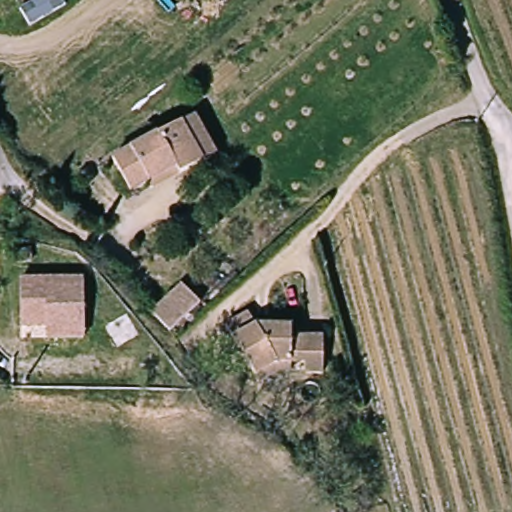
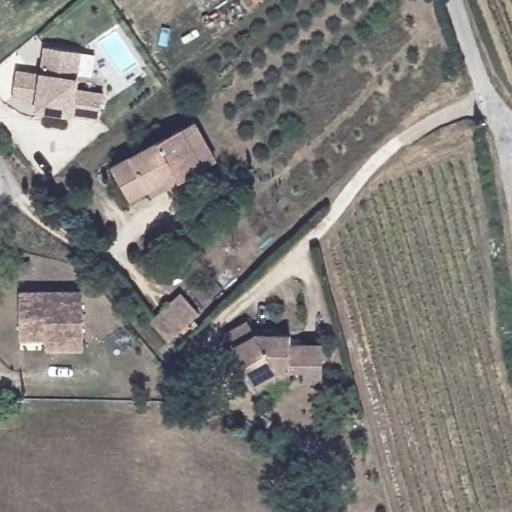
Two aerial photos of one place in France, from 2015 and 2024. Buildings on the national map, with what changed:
new [(17,104),(22,75),(47,79),(51,52),(85,57),(80,94),(108,98),(105,123),(50,116),(41,114),(42,107),(17,104)]
unchanged [(172,178),(130,201),(112,167),(178,132),(195,122),(216,161),(202,169),(177,184),(172,178)]
unchanged [(150,324),(182,295),(200,313),(167,344),(150,324)]
unchanged [(51,343),(50,350),(28,351),(26,303),(84,300),(87,341),(51,343)]
unchanged [(327,349),(328,383),(313,385),(310,376),(277,377),(263,384),(264,387),(257,388),(235,351),(259,338),(262,345),(292,336),(295,351),(327,349)]

